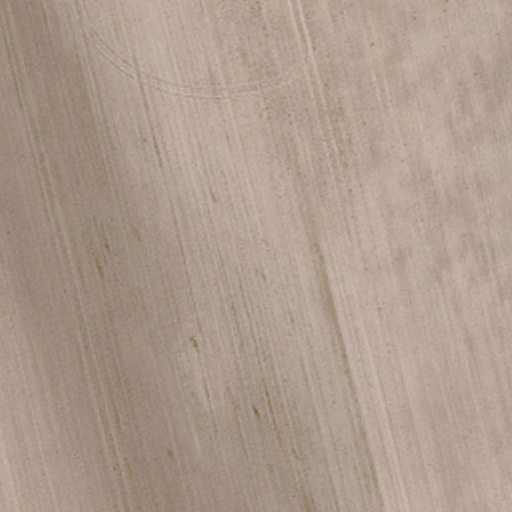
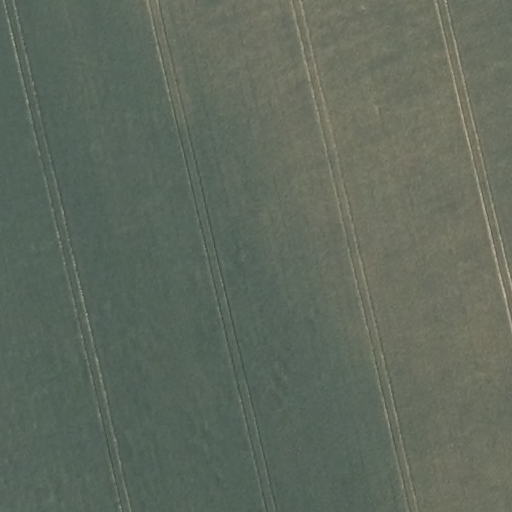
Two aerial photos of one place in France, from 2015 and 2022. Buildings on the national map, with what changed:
[]

